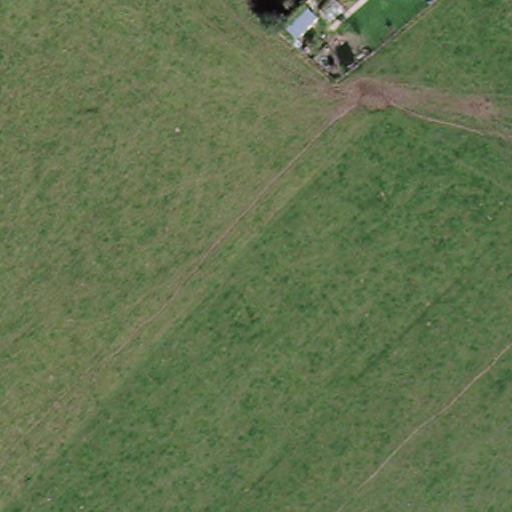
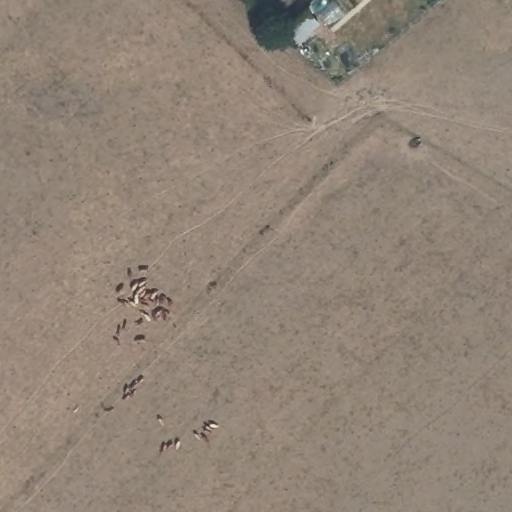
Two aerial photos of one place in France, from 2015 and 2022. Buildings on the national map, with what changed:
[]

